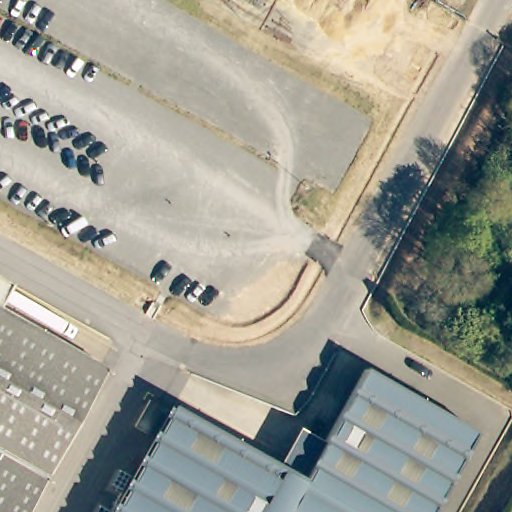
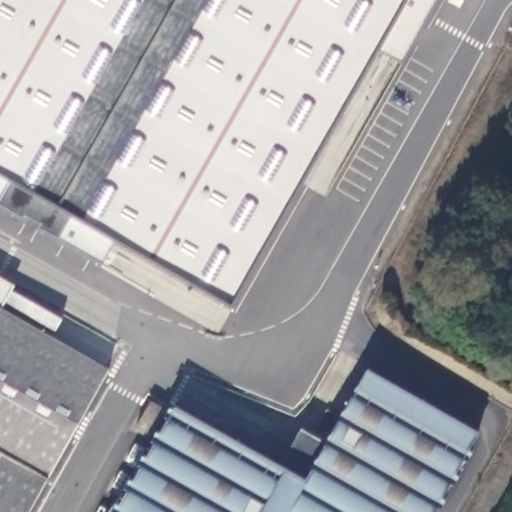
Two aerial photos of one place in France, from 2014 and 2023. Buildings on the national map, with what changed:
new [(377,51),(232,308),(113,244),(101,263),(0,208),(0,0),(434,0),(397,63),(377,51)]
unchanged [(14,287),(1,305),(111,368),(29,512),(0,512),(0,279),(14,287)]
unchanged [(285,468),(306,431),(324,444),(372,365),(483,434),(439,512),(113,512),(172,406),(285,468)]

